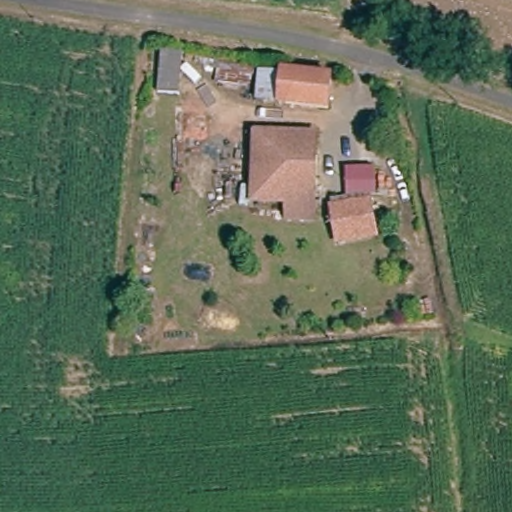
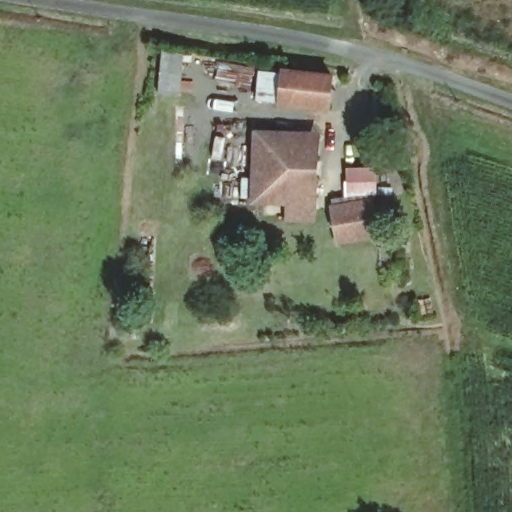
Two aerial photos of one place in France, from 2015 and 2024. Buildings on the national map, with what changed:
unchanged [(162,87),(169,47),(190,52),(184,91),(162,87)]
unchanged [(328,109),(277,99),(255,95),(260,66),(281,70),(282,68),(331,75),(328,109)]
unchanged [(249,132),(272,133),(313,135),(312,207),(312,218),(283,218),(283,205),(247,204),(249,132)]
unchanged [(337,241),(333,200),(348,196),(347,170),(377,170),(373,197),(381,237),(337,241)]

